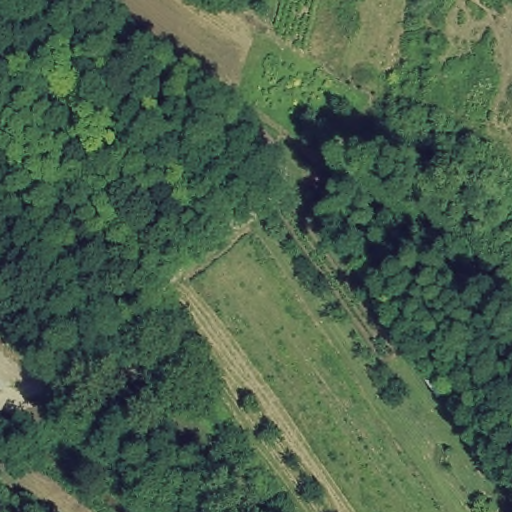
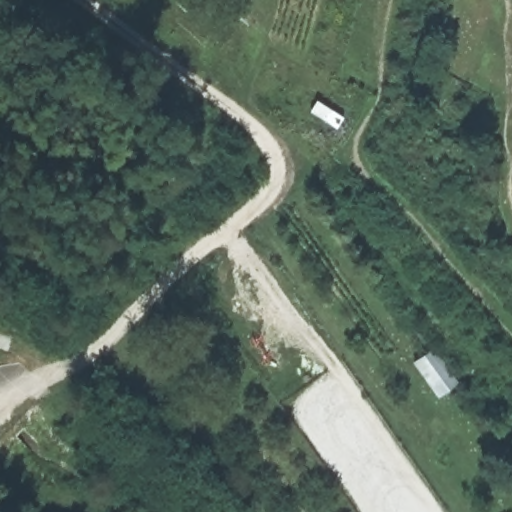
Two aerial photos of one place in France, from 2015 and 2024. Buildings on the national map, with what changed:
unchanged [(449,390),(436,402),(411,364),(423,355),(449,390)]

